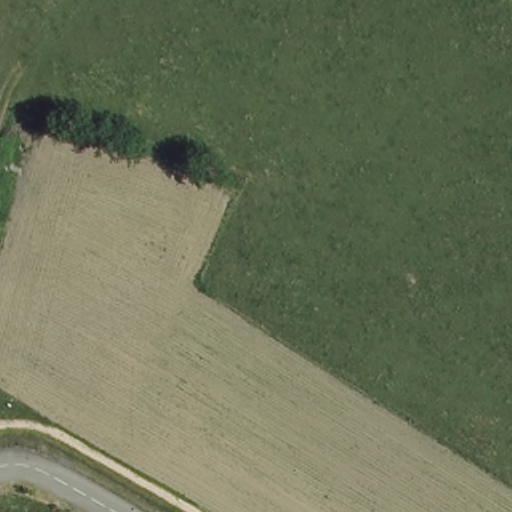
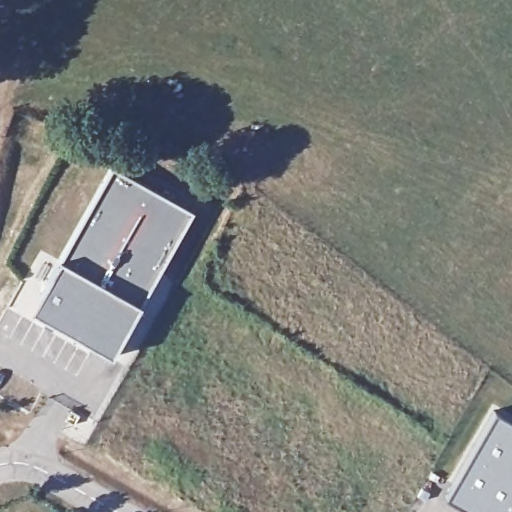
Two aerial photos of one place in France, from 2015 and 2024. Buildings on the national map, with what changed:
new [(113,168),(188,211),(108,355),(28,311),(113,168)]
new [(512,407),(512,489),(499,512),(455,512),(464,495),(442,483),(491,395),(512,407)]
new [(26,511),(29,512),(26,512),(26,511)]

